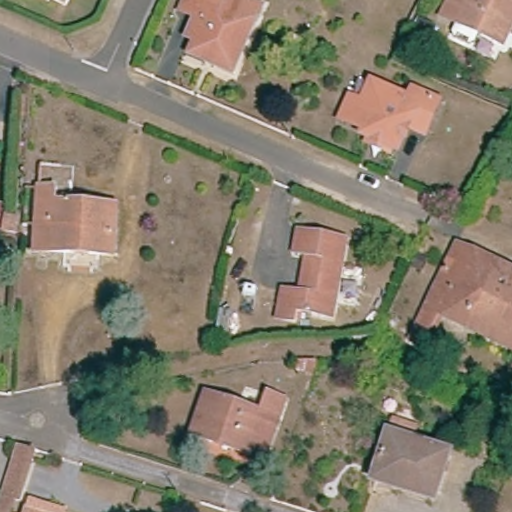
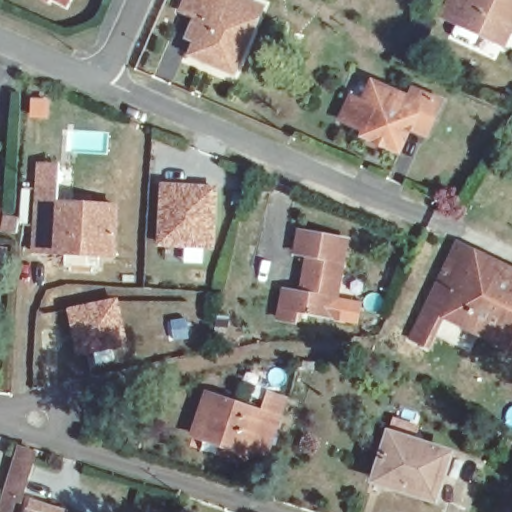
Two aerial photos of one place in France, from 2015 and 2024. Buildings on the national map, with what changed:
unchanged [(199,44),(189,40),(197,20),(181,14),(187,0),(238,0),(264,11),(255,31),(235,78),(215,70),(215,71),(192,61),(197,50),(199,44)]
unchanged [(443,16),(451,0),(512,0),(512,28),(504,45),(443,16)]
unchanged [(419,19),(434,25),(424,48),(409,41),(419,19)]
unchanged [(374,144),(376,139),(369,135),(372,131),(348,120),(357,99),(369,104),(378,84),(415,100),(419,91),(427,95),(445,103),(431,134),(414,126),(404,150),(397,148),(395,153),(374,144)]
new [(219,186),(214,252),(155,248),(159,183),(219,186)]
unchanged [(55,204),(118,207),(115,255),(35,250),(39,189),(55,190),(55,204)]
unchanged [(0,213),(0,207),(1,208),(0,213)]
unchanged [(4,216),(19,219),(16,234),(1,232),(4,216)]
unchanged [(303,298),(309,259),(298,257),(302,236),(347,244),(333,320),(299,314),(298,325),(280,323),(285,294),(303,298)]
unchanged [(459,249),(512,275),(512,352),(443,319),(427,351),(413,344),(428,312),(459,249)]
new [(129,346),(77,357),(66,308),(119,297),(129,346)]
unchanged [(264,419),(272,399),(287,404),(266,464),(194,440),(209,400),(264,419)]
unchanged [(377,481),(391,434),(452,454),(437,499),(396,485),(395,487),(377,481)]
unchanged [(35,454),(19,503),(14,501),(11,512),(0,512),(0,505),(19,448),(35,454)]
unchanged [(32,504),(59,512),(29,512),(32,504)]

